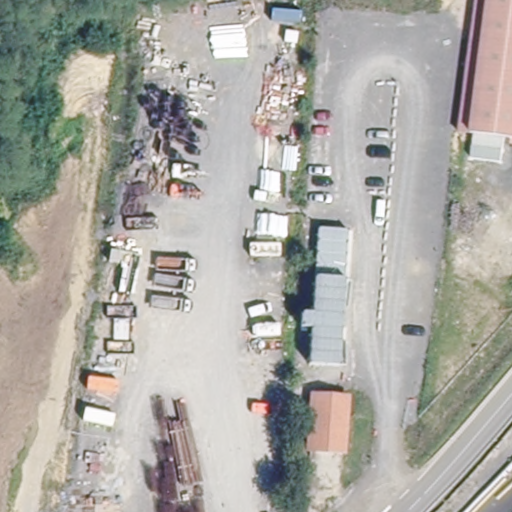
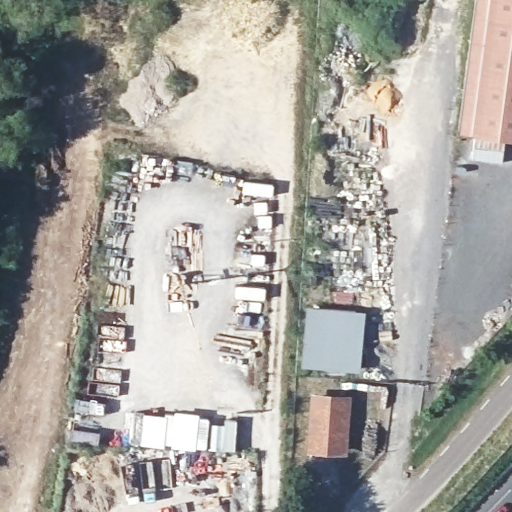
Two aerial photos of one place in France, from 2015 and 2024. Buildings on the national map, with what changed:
unchanged [(478,0),(512,0),(512,140),(466,135),(478,0)]
new [(301,365),(306,306),(365,311),(359,370),(301,365)]
unchanged [(343,451),(311,450),(312,401),(345,401),(343,451)]

